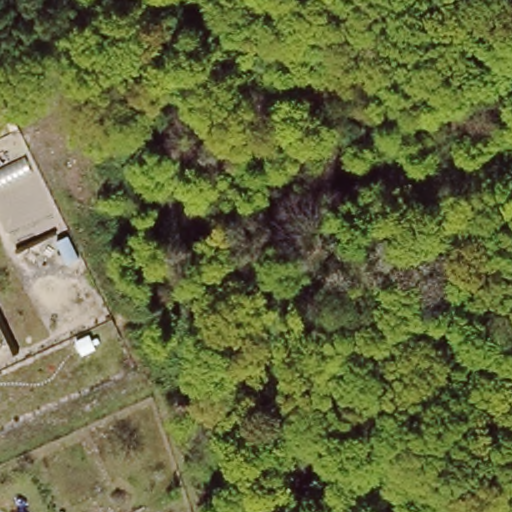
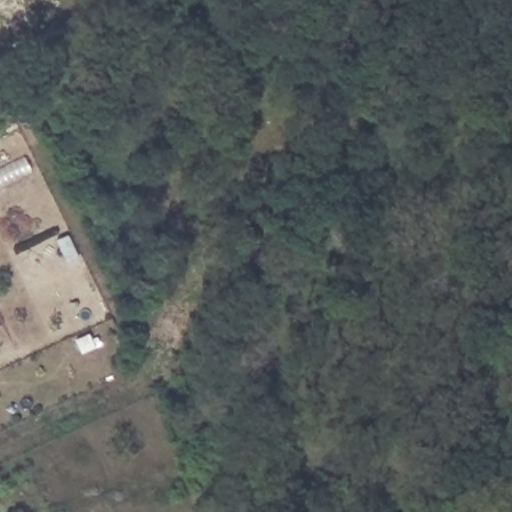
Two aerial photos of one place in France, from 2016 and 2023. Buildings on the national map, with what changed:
unchanged [(58,239),(71,234),(80,255),(68,259),(58,239)]

